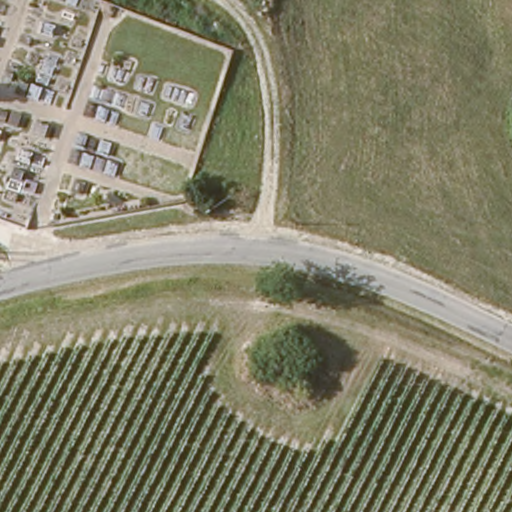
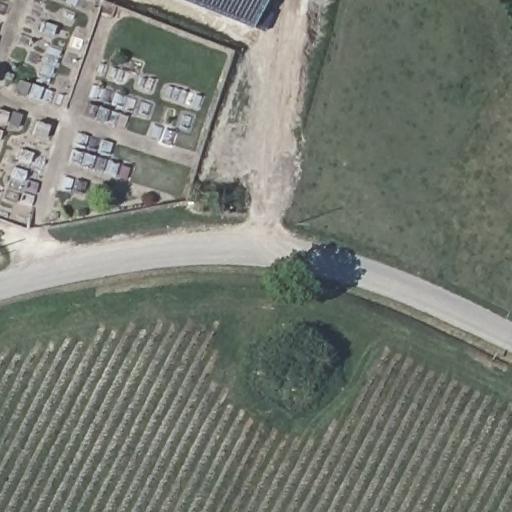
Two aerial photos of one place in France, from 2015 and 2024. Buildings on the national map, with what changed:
new [(249,26),(184,0),(261,0),(249,26)]

